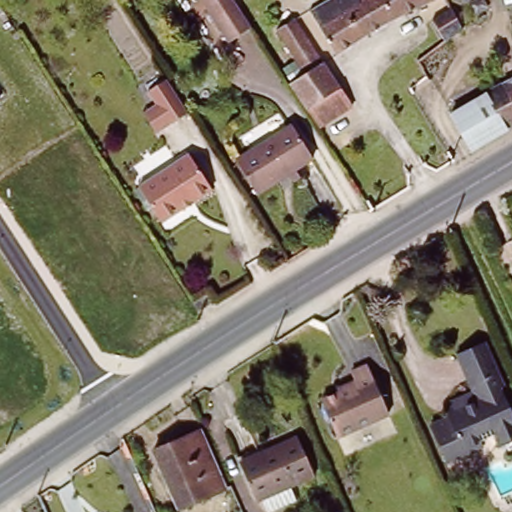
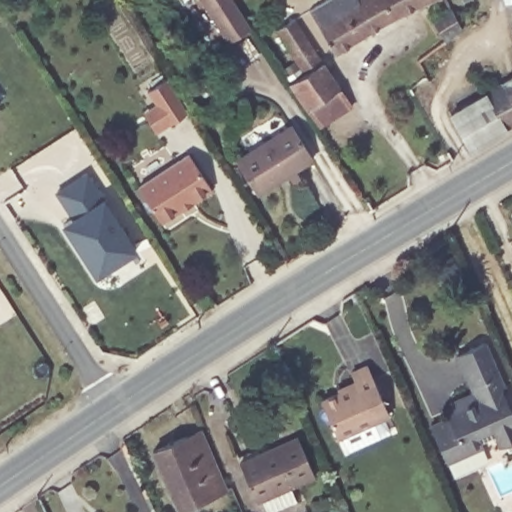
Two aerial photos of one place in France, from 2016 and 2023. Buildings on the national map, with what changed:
unchanged [(230,44),(202,2),(206,0),(233,0),(235,0),(233,1),(252,29),(230,44)]
unchanged [(390,21),(337,53),(310,10),(329,0),(435,0),(424,5),(390,21)]
unchanged [(469,0),(465,2),(464,0),(469,0)]
unchanged [(506,5),(505,0),(512,0),(512,4),(506,5)]
unchanged [(433,20),(452,10),(460,31),(446,42),(448,46),(442,50),(439,45),(445,40),(433,20)]
unchanged [(357,110),(323,132),(295,89),(301,85),(297,77),(305,71),(282,34),(299,22),(357,110)]
unchanged [(147,112),(160,105),(152,92),(170,80),(193,114),(173,125),(160,134),(147,112)]
unchanged [(473,156),(445,107),(482,86),(490,100),(510,134),(510,136),(475,157),(473,156)]
unchanged [(510,134),(490,100),(512,86),(512,133),(510,134)]
unchanged [(240,160),(263,145),(285,132),(306,165),(285,179),(262,194),(240,160)]
unchanged [(188,152),(212,190),(193,201),(190,197),(177,205),(180,210),(160,222),(136,185),(188,152)]
new [(88,172),(105,199),(137,250),(96,277),(62,224),(72,218),(55,192),(88,172)]
unchanged [(204,295),(210,303),(195,312),(190,303),(204,295)]
unchanged [(456,403),(453,397),(478,386),(464,352),(492,341),(503,366),(508,379),(503,382),(512,401),(512,435),(502,440),(495,426),(482,433),(485,443),(448,460),(432,422),(450,413),(447,407),(456,403)]
unchanged [(323,405),(358,389),(353,377),(367,371),(388,419),(338,440),(323,405)]
unchanged [(155,452),(202,431),(227,488),(180,509),(155,452)]
unchanged [(315,476),(258,502),(238,457),(295,432),(315,476)]

